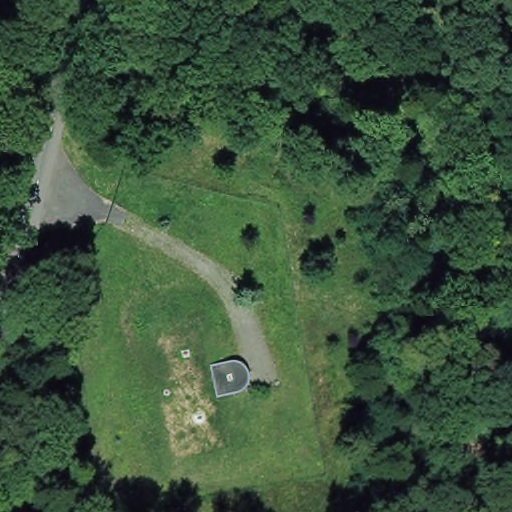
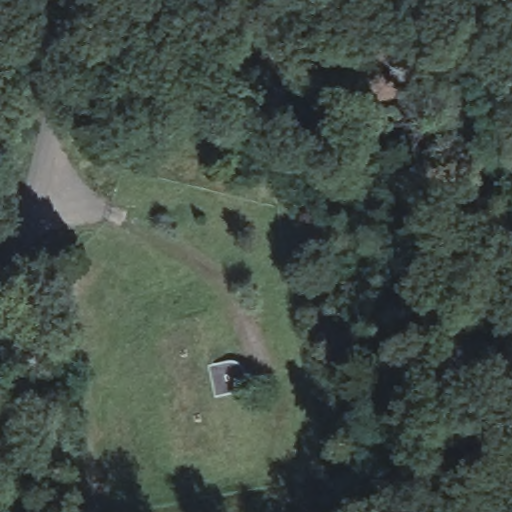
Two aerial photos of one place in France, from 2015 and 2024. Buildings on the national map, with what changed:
unchanged [(215,357),(248,351),(254,384),(220,389),(215,357)]

